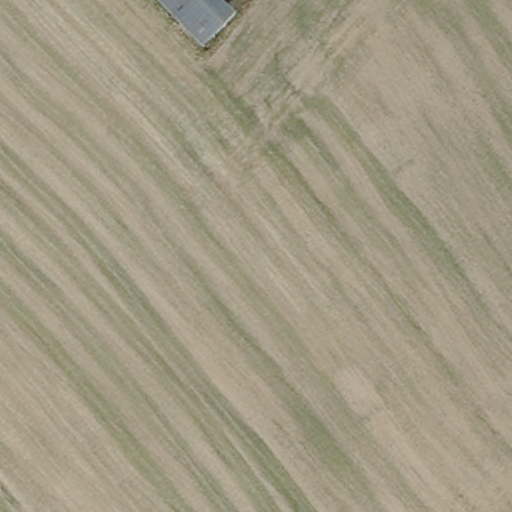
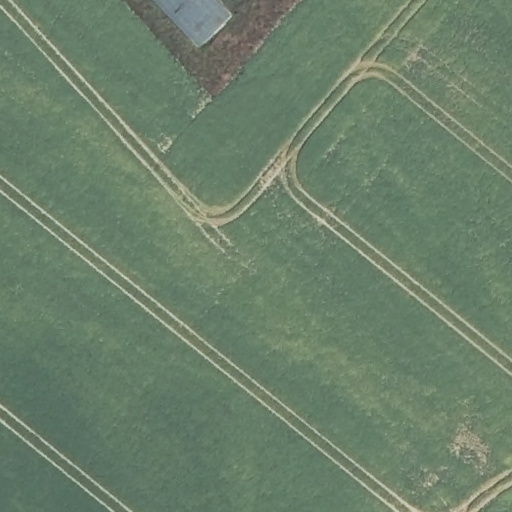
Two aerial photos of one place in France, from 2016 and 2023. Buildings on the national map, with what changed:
unchanged [(238,18),(204,49),(156,0),(220,0),(238,18)]

